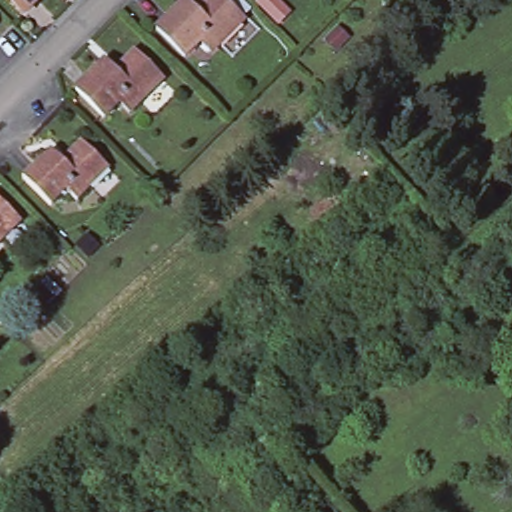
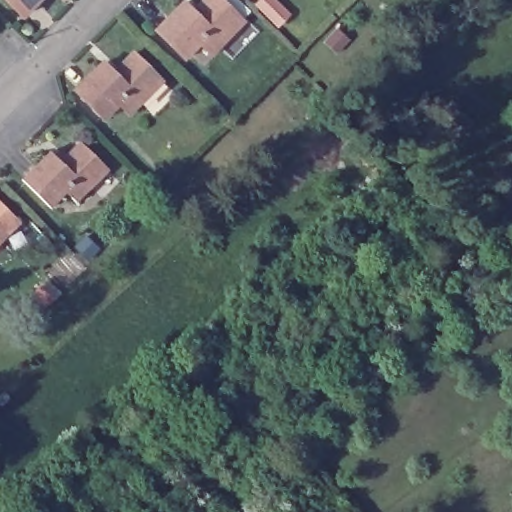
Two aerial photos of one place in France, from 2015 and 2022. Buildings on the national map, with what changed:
unchanged [(0,3),(0,0),(32,0),(15,18),(0,3)]
unchanged [(191,13),(203,0),(219,0),(240,20),(207,53),(198,44),(182,60),(153,31),(181,3),(191,13)]
unchanged [(102,63),(112,74),(132,54),(160,81),(127,114),(117,104),(101,120),(72,92),(102,63)]
unchanged [(48,148),(58,158),(79,138),(107,166),(74,199),(64,189),(47,205),(20,176),(48,148)]
unchanged [(0,249),(0,202),(24,226),(0,249)]

